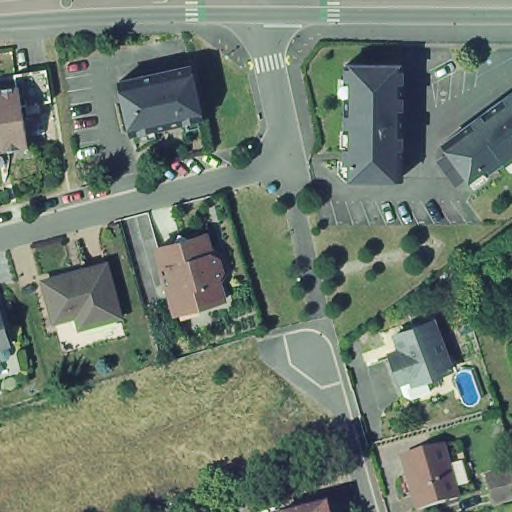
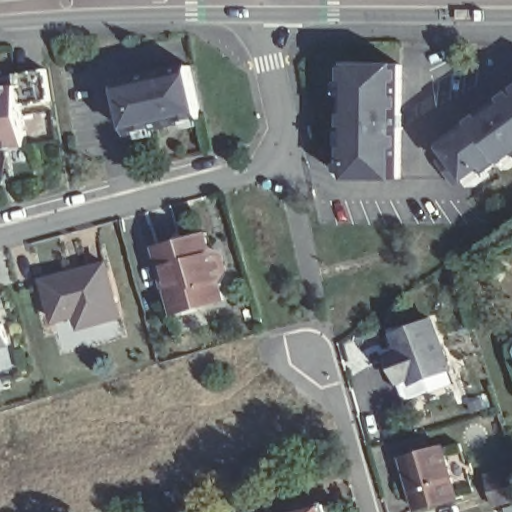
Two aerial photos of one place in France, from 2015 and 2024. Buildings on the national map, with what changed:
unchanged [(403,112),(404,112),(405,128),(403,129),(403,177),(353,177),(348,177),(348,176),(353,176),(353,162),(348,162),(348,144),(355,144),(355,131),(348,130),(349,94),(353,94),(354,81),(349,81),(349,63),(403,64),(403,112)]
unchanged [(0,80),(14,78),(13,73),(45,68),(50,99),(21,103),(27,143),(0,147),(0,80)]
unchanged [(203,119),(131,135),(119,85),(191,69),(203,119)]
unchanged [(443,161),(454,152),(447,143),(489,113),(489,110),(500,102),(503,102),(512,95),(512,153),(489,169),(493,174),(478,185),(469,175),(459,183),(443,161)]
unchanged [(219,280),(226,300),(178,313),(170,285),(165,266),(160,249),(176,245),(181,235),(193,239),(208,235),(212,251),(226,258),(228,267),(219,280)]
unchanged [(121,321),(62,337),(43,266),(103,251),(121,321)]
unchanged [(5,328),(11,347),(6,348),(0,350),(0,311),(1,311),(5,328)]
unchanged [(407,396),(400,378),(390,352),(402,347),(396,332),(433,318),(451,367),(428,375),(433,387),(407,396)]
unchanged [(442,442),(443,445),(456,492),(457,495),(416,506),(401,453),(442,442)]
unchanged [(512,472),(512,502),(496,506),(488,478),(512,472)]
unchanged [(340,512),(304,512),(338,504),(340,512)]

